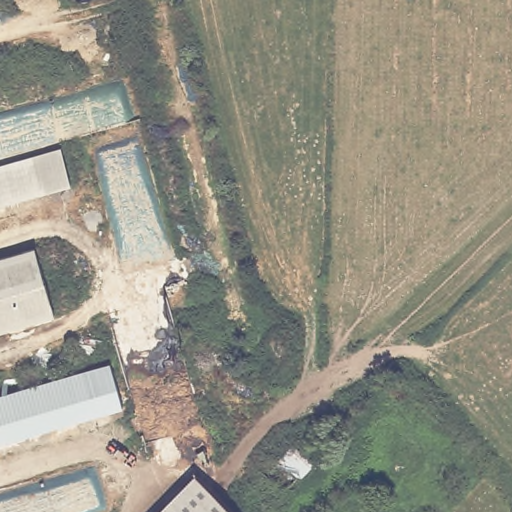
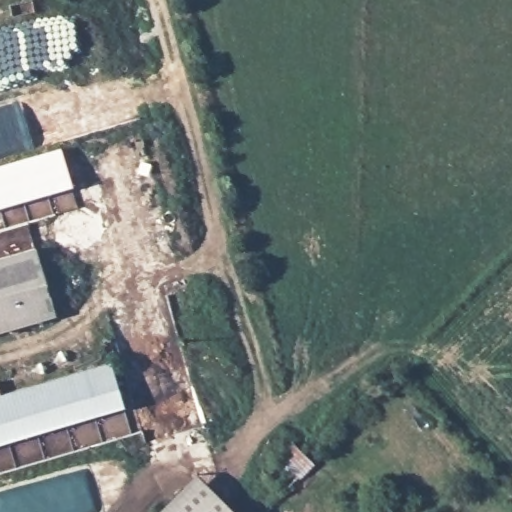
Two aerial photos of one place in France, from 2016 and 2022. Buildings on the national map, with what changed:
unchanged [(59,146),(70,183),(0,203),(0,163),(59,146)]
unchanged [(37,249),(55,309),(20,321),(0,328),(0,261),(24,253),(37,249)]
unchanged [(109,365),(112,375),(122,406),(93,416),(39,434),(0,447),(0,399),(41,386),(109,365)]
unchanged [(201,479),(235,512),(167,512),(170,508),(201,479)]

